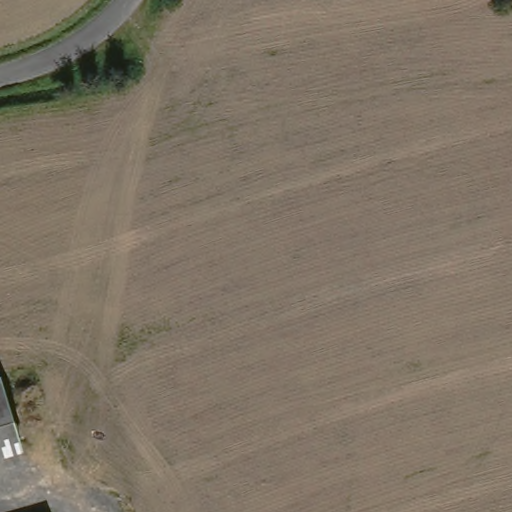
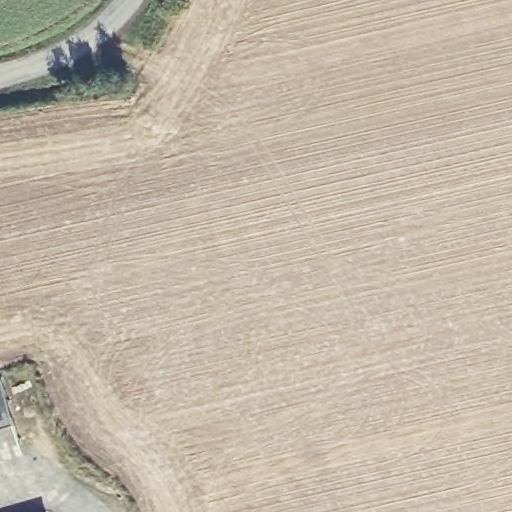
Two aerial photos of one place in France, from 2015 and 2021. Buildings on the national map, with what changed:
unchanged [(0,453),(0,384),(4,383),(24,446),(0,453)]

